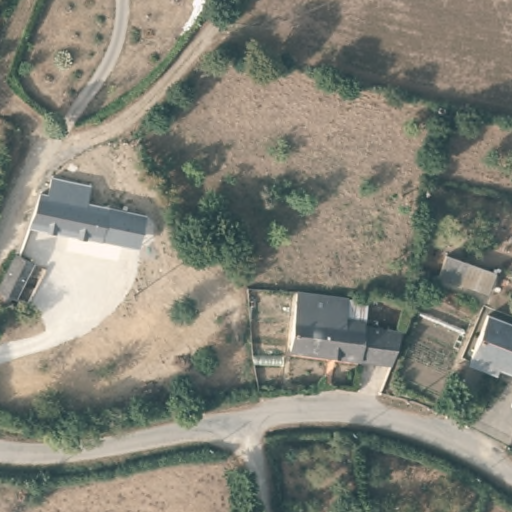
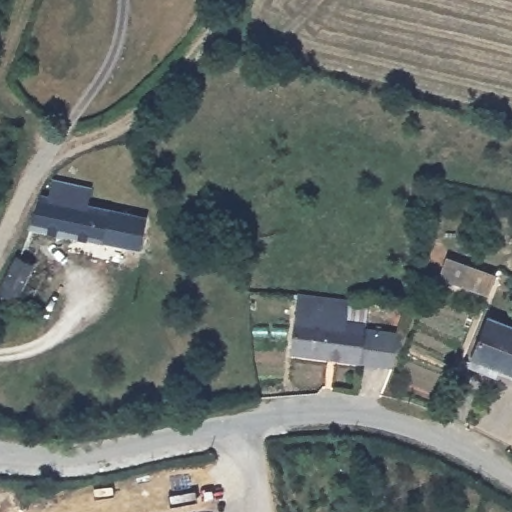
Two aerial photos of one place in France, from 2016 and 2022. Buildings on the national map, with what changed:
unchanged [(91,183),(88,200),(108,204),(101,234),(30,220),(40,191),(50,192),(57,177),(91,183)]
unchanged [(145,211),(138,241),(101,234),(108,204),(145,211)]
unchanged [(487,291),(443,269),(453,250),(497,271),(487,291)]
unchanged [(31,264),(15,302),(0,295),(0,290),(10,266),(15,257),(31,264)]
unchanged [(293,349),(298,289),(350,295),(348,316),(395,322),(393,360),(293,349)]
unchanged [(469,351),(487,315),(512,326),(512,373),(469,351)]

